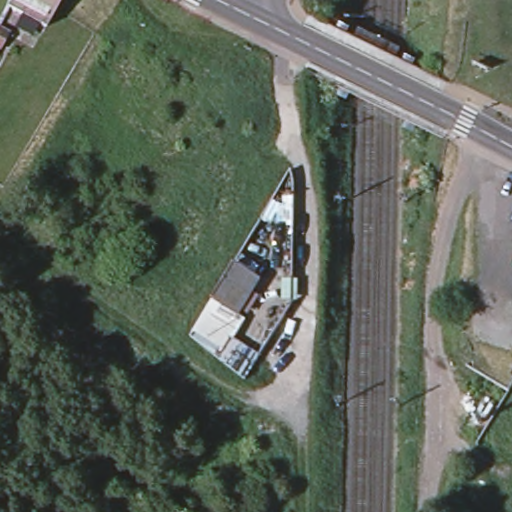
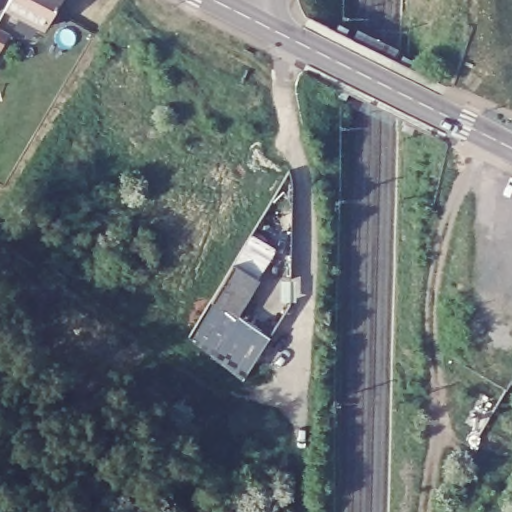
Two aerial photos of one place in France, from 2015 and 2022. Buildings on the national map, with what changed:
unchanged [(7,3),(8,0),(59,0),(45,24),(7,3)]
unchanged [(0,45),(0,28),(7,32),(0,45)]
unchanged [(232,260),(260,279),(242,315),(245,315),(231,335),(257,351),(242,374),(217,354),(188,334),(211,297),(232,260)]
unchanged [(510,376),(512,373),(512,377),(510,376)]

